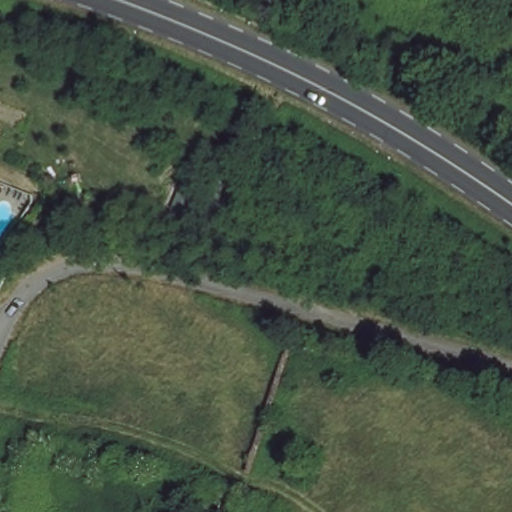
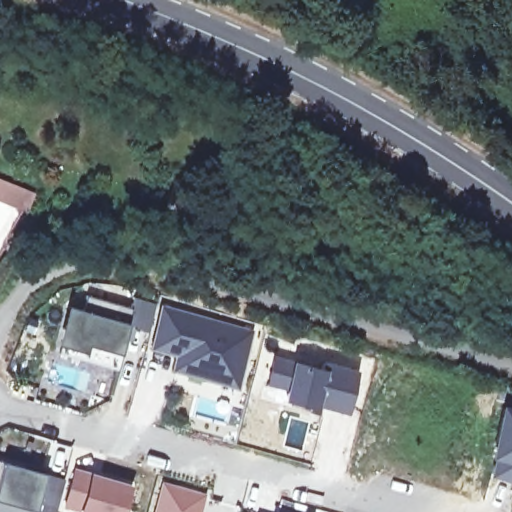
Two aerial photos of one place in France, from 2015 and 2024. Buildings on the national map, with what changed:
new [(72,308),(84,311),(88,296),(133,310),(135,298),(157,305),(150,333),(128,327),(120,355),(117,370),(60,353),(62,345),(72,308)]
new [(219,382),(173,370),(178,355),(152,348),(163,308),(253,332),(243,368),(237,388),(219,382)]
new [(324,372),(326,365),(357,373),(347,412),(317,404),(315,407),(286,399),(288,389),(269,383),(276,359),(324,372)]
new [(503,405),(512,407),(512,483),(488,477),(503,405)]
new [(56,512),(0,512),(0,461),(65,480),(56,512)]
new [(79,475),(132,491),(125,512),(79,512),(69,509),(79,475)]
new [(161,479),(206,491),(201,512),(152,512),(161,479)]
demolished [(195,507),(202,483),(235,493),(230,512),(210,512),(197,508),(195,507)]

